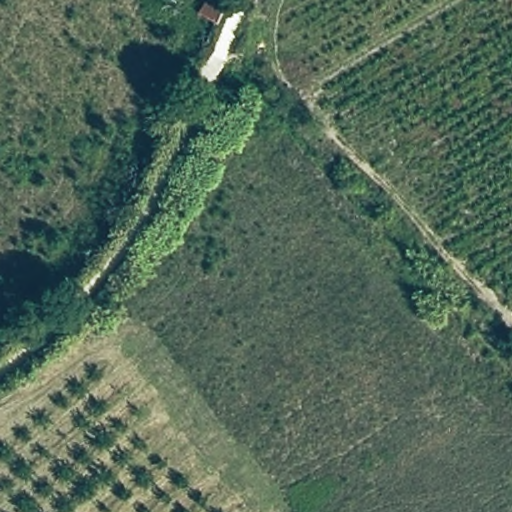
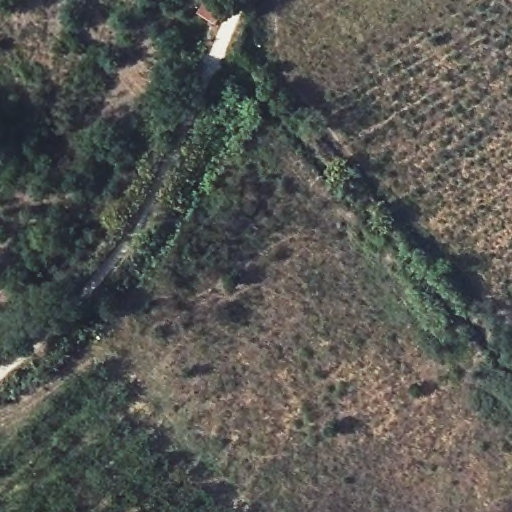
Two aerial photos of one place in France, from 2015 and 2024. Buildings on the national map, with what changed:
unchanged [(202,0),(225,0),(215,27),(194,15),(202,0)]

